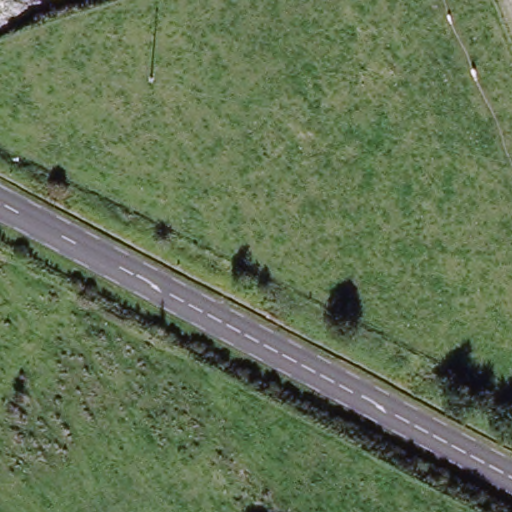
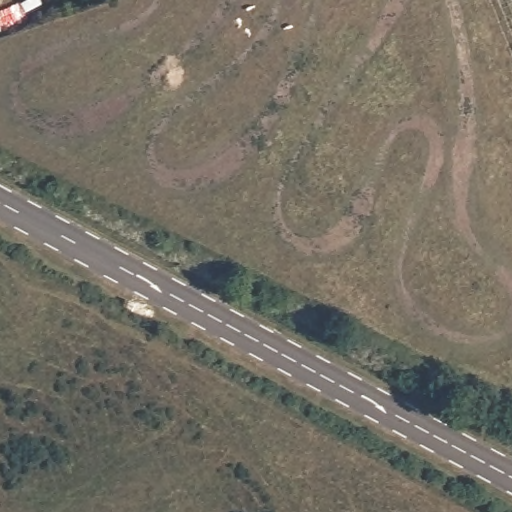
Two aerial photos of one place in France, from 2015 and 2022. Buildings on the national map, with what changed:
[]

